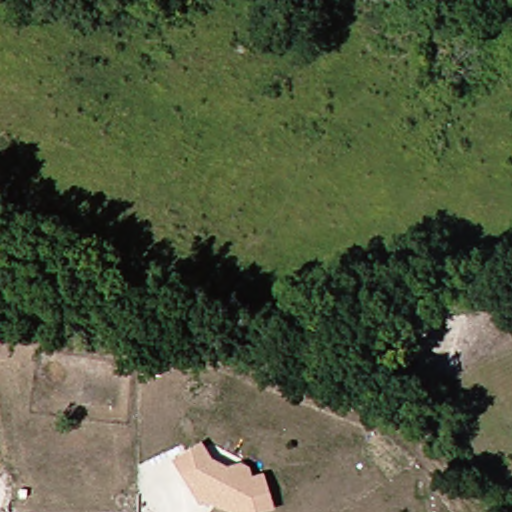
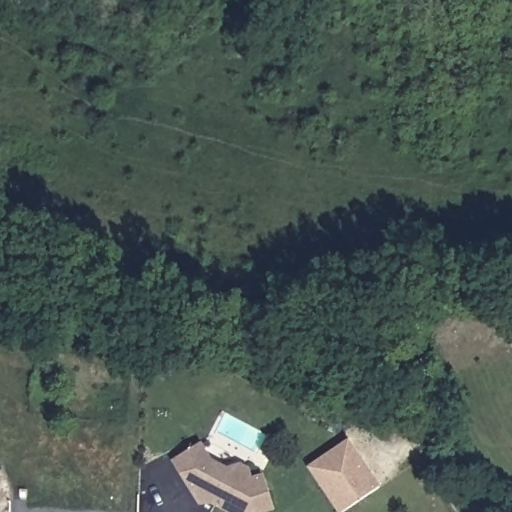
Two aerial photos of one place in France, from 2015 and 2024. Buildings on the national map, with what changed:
unchanged [(273,512),(223,512),(209,505),(202,507),(173,459),(204,440),(214,457),(232,464),(246,461),(266,471),(275,511),(273,512)]
new [(379,484),(341,509),(319,478),(311,465),(331,451),(349,440),(379,484)]

